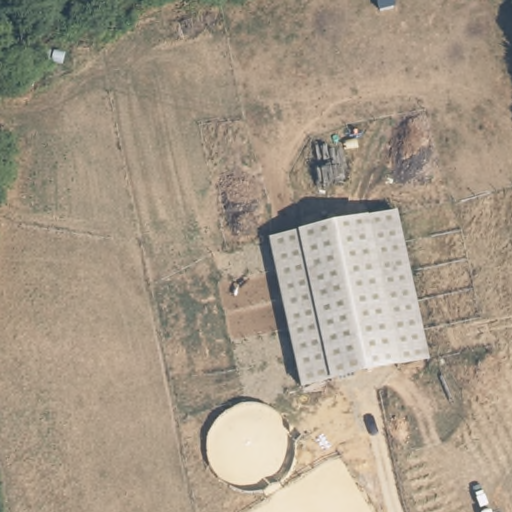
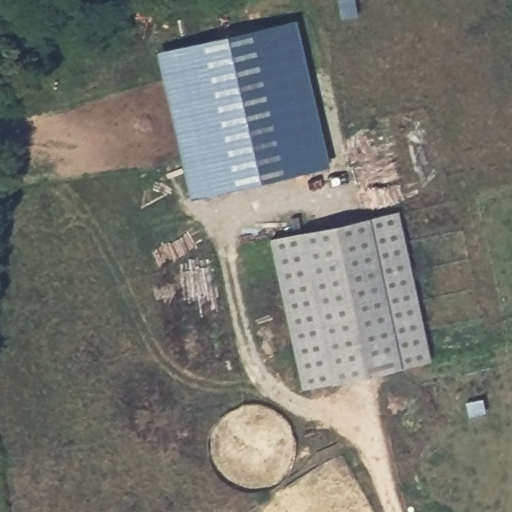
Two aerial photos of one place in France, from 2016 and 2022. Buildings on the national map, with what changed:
new [(187,199),(154,51),(299,17),(303,32),(299,34),(328,165),(187,199)]
unchanged [(398,210),(431,364),(300,392),(268,240),(398,210)]

